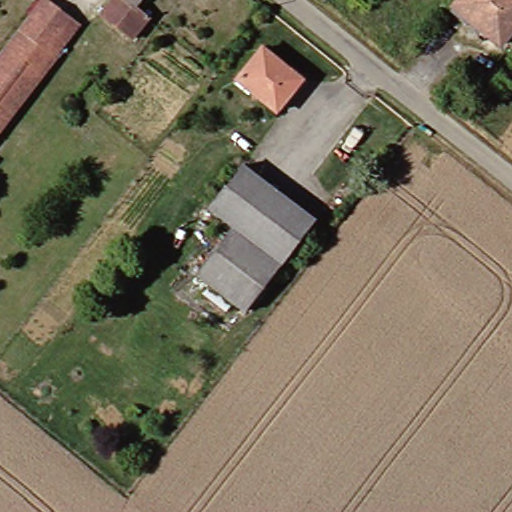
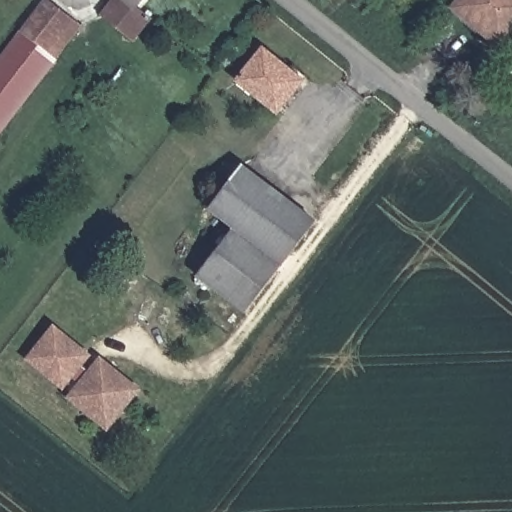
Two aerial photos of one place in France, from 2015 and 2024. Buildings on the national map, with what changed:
unchanged [(139,4),(155,17),(136,42),(105,18),(118,0),(117,0),(141,0),(139,4)]
unchanged [(498,51),(448,10),(457,0),(512,0),(512,36),(498,51)]
unchanged [(45,4),(68,24),(45,53),(21,35),(45,4)]
unchanged [(68,24),(77,31),(0,131),(0,64),(21,35),(45,53),(68,24)]
unchanged [(297,90),(275,120),(237,89),(260,59),(297,90)]
unchanged [(239,171),(311,226),(242,317),(194,280),(230,230),(208,212),(239,171)]
new [(54,324),(94,356),(85,368),(89,372),(101,357),(143,390),(109,433),(66,399),(68,394),(25,360),(54,324)]

